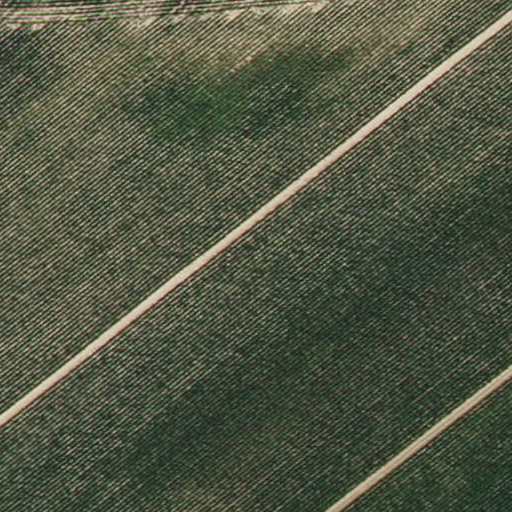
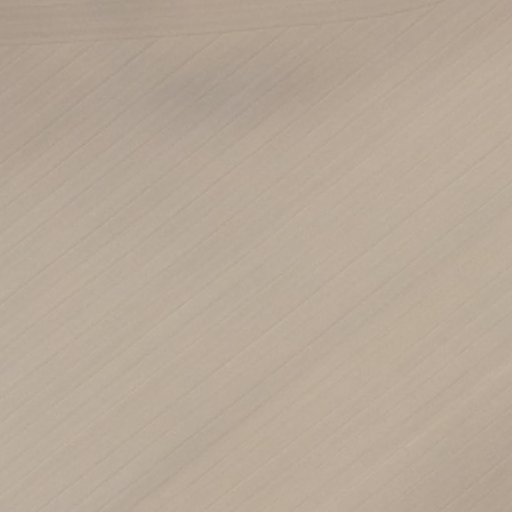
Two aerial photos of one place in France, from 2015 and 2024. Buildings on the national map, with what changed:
[]

